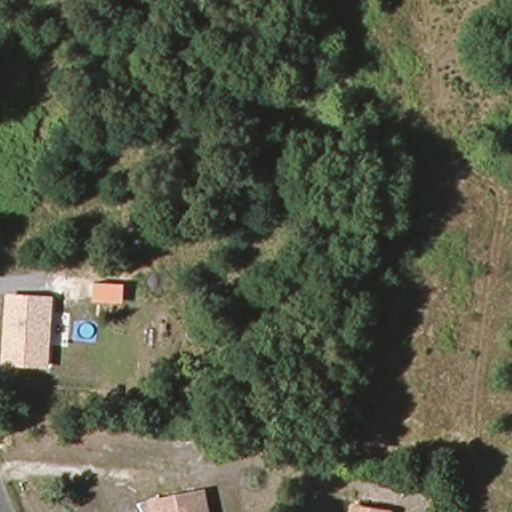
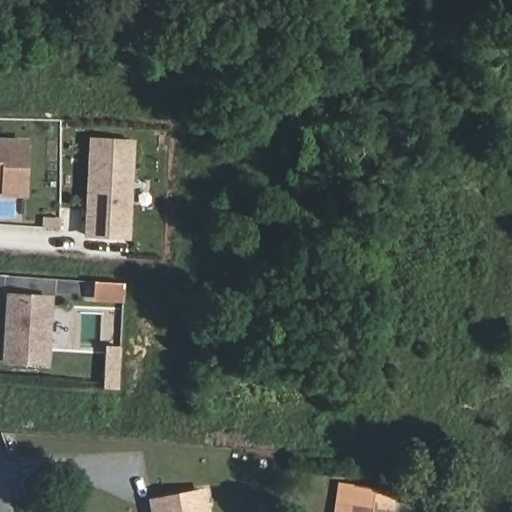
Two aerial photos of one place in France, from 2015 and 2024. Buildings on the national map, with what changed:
new [(28,138),(26,199),(0,198),(0,137),(28,138)]
new [(133,140),(128,241),(82,238),(87,137),(133,140)]
unchanged [(48,368),(1,365),(6,293),(55,296),(48,368)]
unchanged [(205,488),(210,512),(148,512),(145,498),(205,488)]
unchanged [(359,512),(359,510),(377,512),(359,512)]

